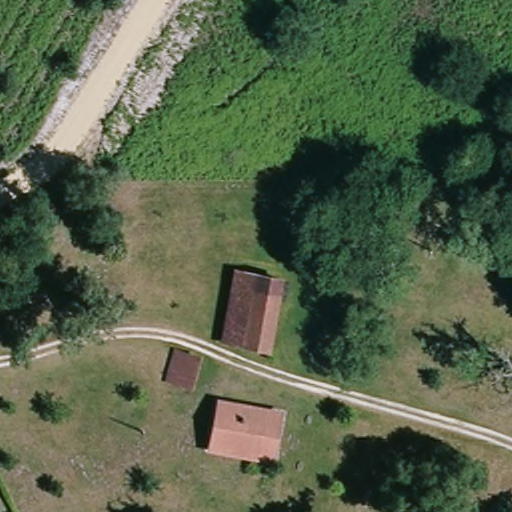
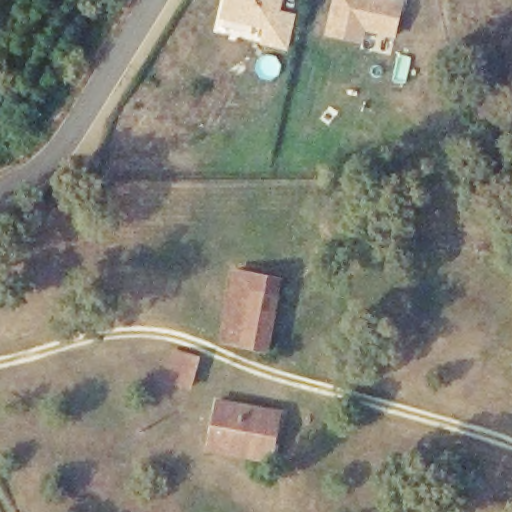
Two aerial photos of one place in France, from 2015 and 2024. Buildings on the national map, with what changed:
new [(280,11),(295,15),(287,50),(259,45),(264,27),(221,20),(225,0),(282,0),(280,11)]
new [(395,39),(365,32),(363,44),(325,35),(333,0),(404,0),(395,39)]
unchanged [(269,346),(220,332),(237,273),(286,287),(269,346)]
unchanged [(199,391),(170,383),(178,352),(207,360),(199,391)]
unchanged [(244,453),(205,440),(221,396),(259,410),(276,415),(263,460),(244,453)]

